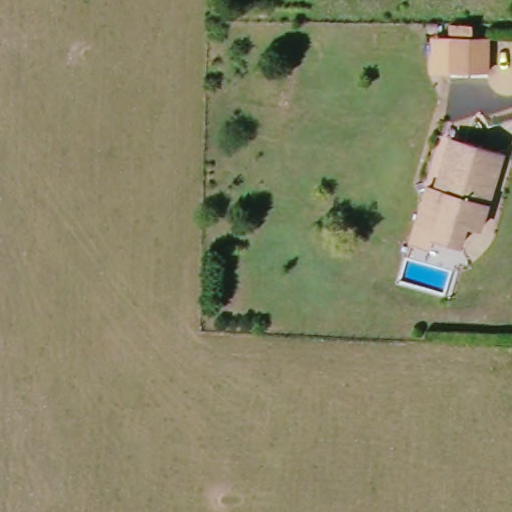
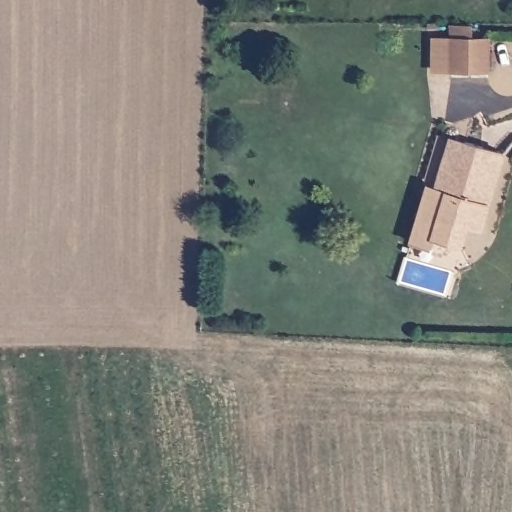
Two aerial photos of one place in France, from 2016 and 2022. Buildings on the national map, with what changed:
unchanged [(488,36),(487,68),(451,68),(452,36),(488,36)]
unchanged [(474,232),(462,228),(455,248),(429,238),(424,251),(404,242),(422,186),(432,190),(449,141),(498,156),(474,232)]

